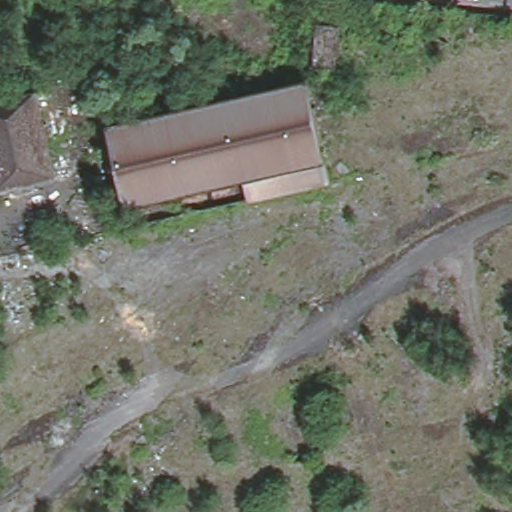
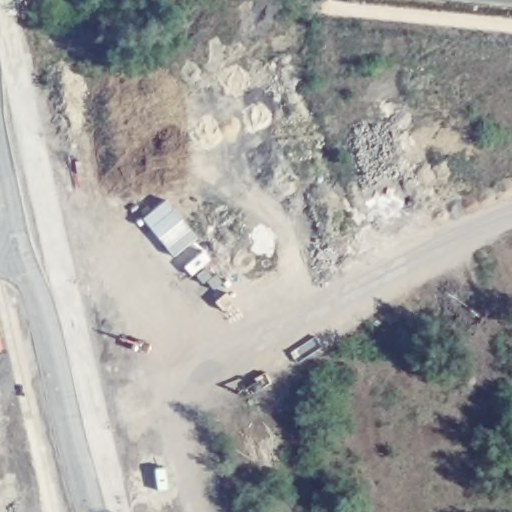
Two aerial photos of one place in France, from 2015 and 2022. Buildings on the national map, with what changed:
demolished [(305,60),(309,34),(311,25),(333,29),(331,37),(326,63),(305,60)]
demolished [(321,147),(127,199),(105,122),(301,69),(321,147)]
demolished [(25,92),(48,176),(0,188),(0,98),(25,92)]
demolished [(321,147),(327,168),(133,220),(127,199),(321,147)]

